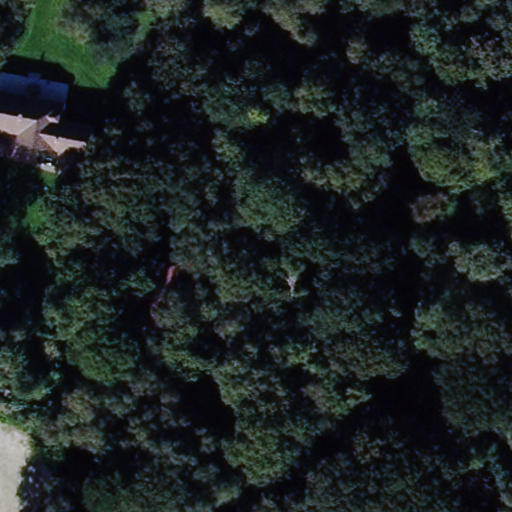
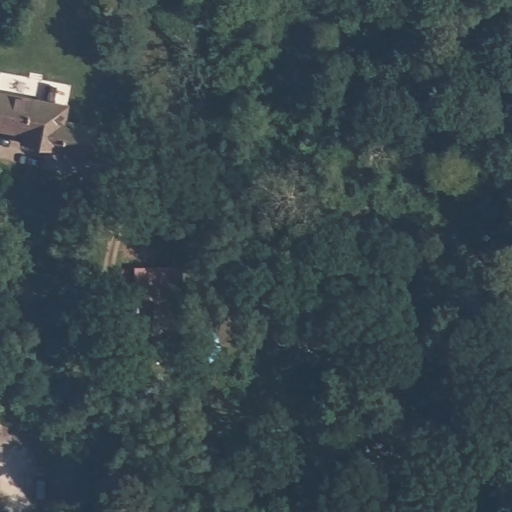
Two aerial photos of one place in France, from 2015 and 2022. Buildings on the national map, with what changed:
unchanged [(68,125),(97,130),(93,157),(33,146),(35,137),(0,131),(0,97),(69,110),(68,125)]

